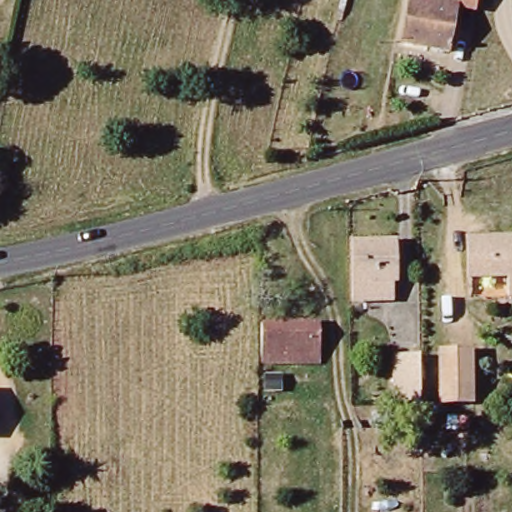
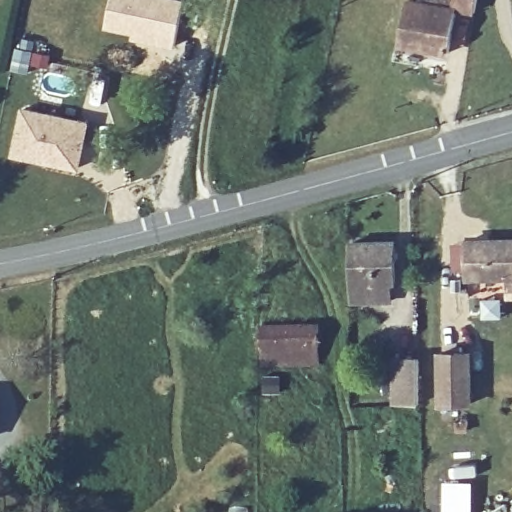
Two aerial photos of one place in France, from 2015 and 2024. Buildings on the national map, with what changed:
new [(110,0),(185,0),(175,49),(104,29),(110,0)]
unchanged [(475,13),(455,9),(446,53),(401,44),(410,0),(420,0),(427,2),(427,0),(477,0),(475,13)]
new [(15,44),(25,46),(25,41),(35,44),(34,49),(51,53),(47,70),(30,66),(27,76),(9,72),(15,44)]
new [(20,105),(90,120),(79,172),(9,156),(20,105)]
unchanged [(506,278),(467,279),(467,242),(512,241),(512,297),(507,297),(506,278)]
unchanged [(391,243),(392,302),(355,302),(353,244),(391,243)]
unchanged [(260,325),(316,326),(315,361),(259,361),(260,325)]
unchanged [(441,405),(440,352),(470,353),(470,405),(441,405)]
unchanged [(420,358),(420,403),(395,403),(394,358),(420,358)]

